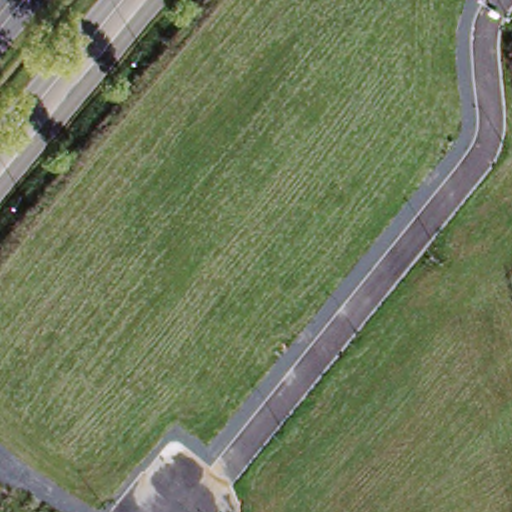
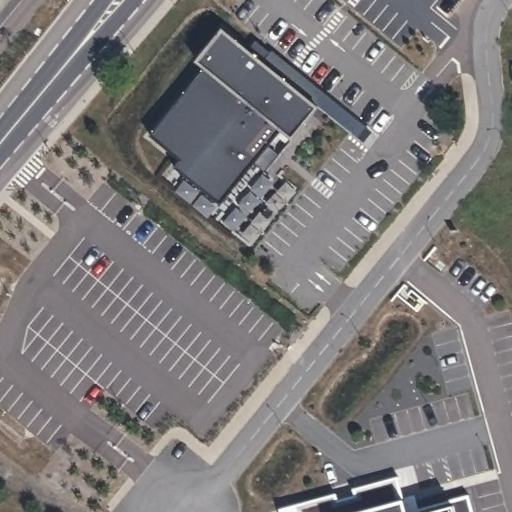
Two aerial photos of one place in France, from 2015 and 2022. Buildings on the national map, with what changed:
new [(194,65),(220,34),(245,54),(252,44),(267,55),(269,54),(365,132),(357,141),(261,62),(259,65),(314,110),(261,175),(251,167),(217,208),(171,170),(177,163),(147,138),(201,71),(194,65)]
new [(274,511),(289,507),(397,477),(402,497),(409,496),(414,511),(465,497),(469,512),(274,512),(274,511)]

